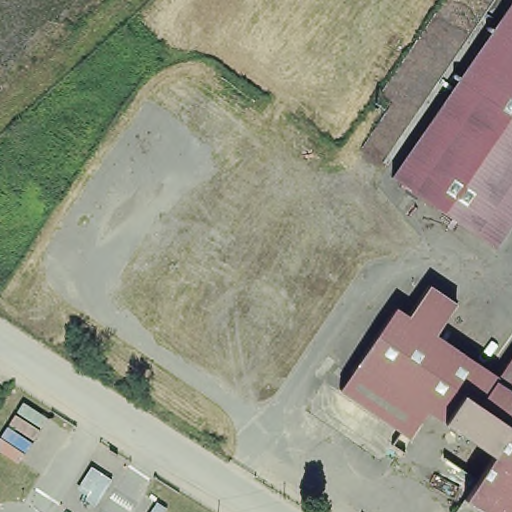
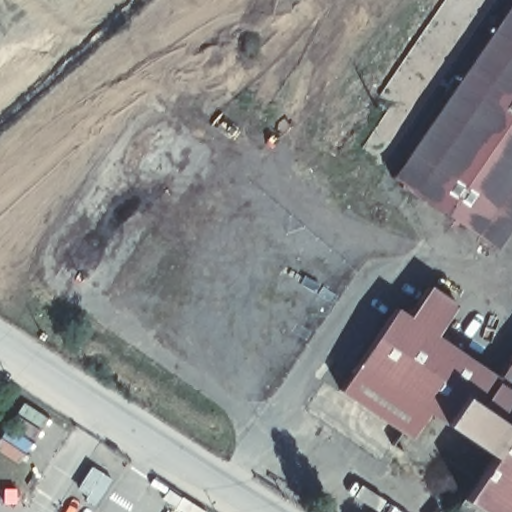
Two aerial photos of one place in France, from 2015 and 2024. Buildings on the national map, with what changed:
unchanged [(502,247),(400,179),(512,12),(512,232),(502,247)]
unchanged [(437,406),(414,434),(347,387),(354,378),(321,355),(329,344),(349,358),(395,299),(411,310),(431,284),(458,304),(437,332),(496,376),(512,354),(512,507),(508,512),(495,512),(472,496),(502,453),(437,406)]
unchanged [(0,392),(0,381),(5,385),(0,392)]
unchanged [(78,482),(91,464),(110,476),(93,502),(83,495),(74,489),(78,482)]

